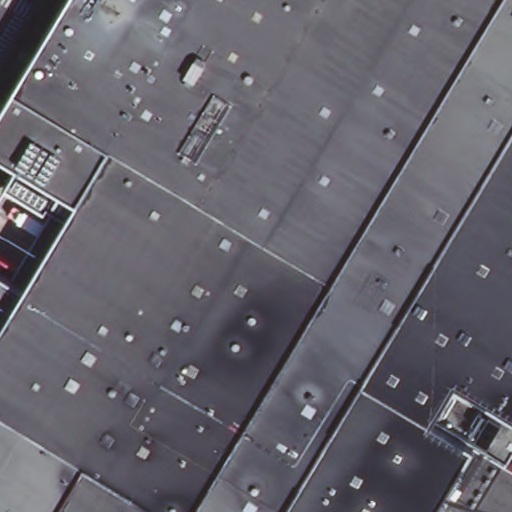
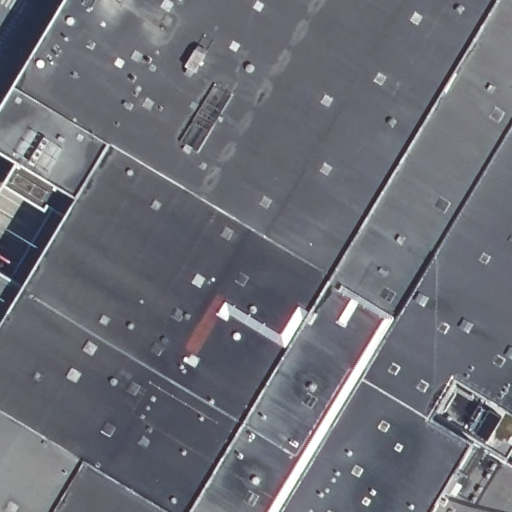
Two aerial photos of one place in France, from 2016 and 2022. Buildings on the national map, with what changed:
unchanged [(43,211),(1,186),(15,162),(0,153),(0,105),(63,0),(512,0),(512,441),(500,459),(512,466),(512,512),(0,512),(0,256),(16,265),(49,209),(46,207),(43,211)]

